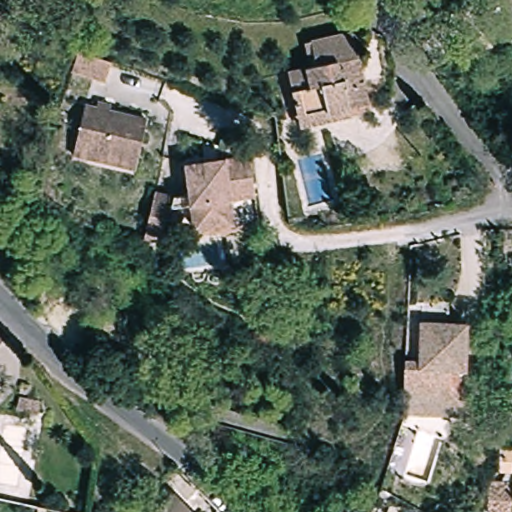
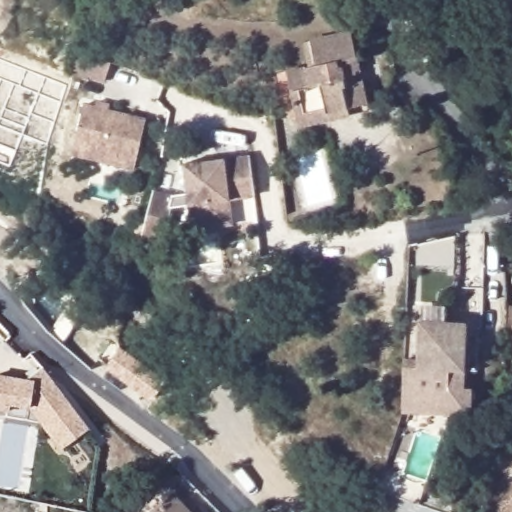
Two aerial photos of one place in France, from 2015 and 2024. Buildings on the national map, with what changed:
unchanged [(298,110),(288,67),(309,62),(304,39),(312,36),(351,28),(361,65),(363,76),(369,99),(370,106),(300,121),(298,110)]
unchanged [(114,65),(108,85),(72,74),(78,54),(114,65)]
new [(46,144),(22,135),(10,165),(0,161),(0,58),(66,85),(46,144)]
unchanged [(71,150),(75,137),(88,97),(147,114),(135,155),(131,168),(71,150)]
unchanged [(193,188),(189,157),(250,151),(253,179),(254,190),(229,194),(233,217),(221,219),(196,221),(194,197),(169,200),(163,200),(153,237),(136,232),(150,186),(166,191),(170,190),(193,188)]
unchanged [(506,330),(507,322),(510,302),(512,302),(512,331),(506,330)]
unchanged [(467,410),(444,410),(399,408),(401,357),(416,357),(417,319),(461,320),(459,385),(467,385),(467,410)]
new [(168,386),(154,405),(104,366),(119,346),(168,386)]
new [(40,368),(86,430),(58,451),(38,423),(26,421),(3,418),(4,414),(0,413),(0,377),(24,380),(40,368)]
unchanged [(216,404),(288,421),(283,440),(213,425),(216,404)]
unchanged [(504,468),(506,441),(512,442),(512,469),(504,468)]
unchanged [(493,507),(494,477),(512,478),(512,512),(497,512),(496,507),(493,507)]
unchanged [(158,512),(174,497),(189,512),(158,512)]
new [(416,512),(387,512),(390,502),(417,511),(416,512)]

